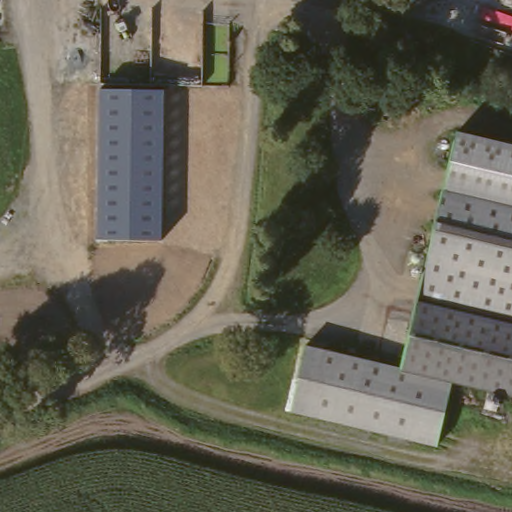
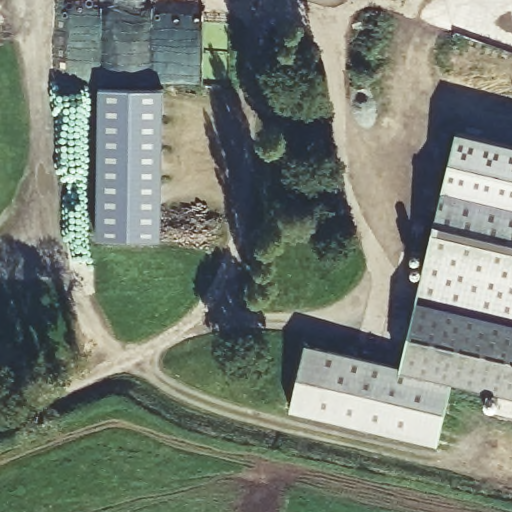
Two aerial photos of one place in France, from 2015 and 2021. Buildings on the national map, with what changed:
unchanged [(194,265),(92,261),(98,81),(200,85),(194,265)]
unchanged [(453,144),(512,157),(512,392),(452,380),(438,442),(289,410),(303,347),(398,366),(453,144)]

